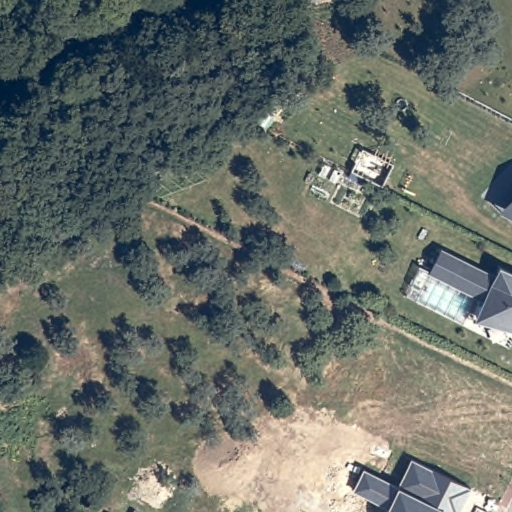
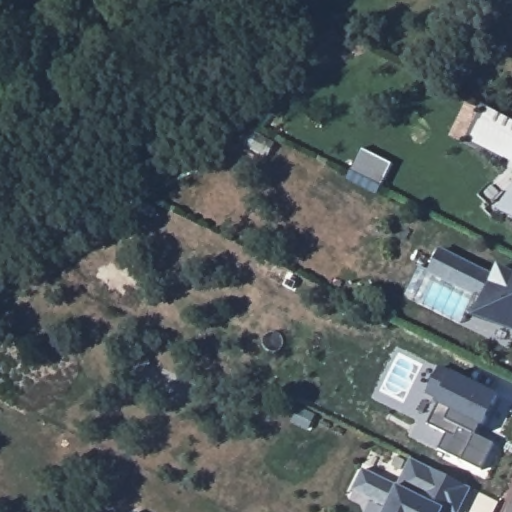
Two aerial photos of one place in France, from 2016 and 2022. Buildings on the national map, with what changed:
unchanged [(512,193),(512,218),(495,210),(512,193)]
unchanged [(441,248),(495,274),(499,265),(512,271),(512,328),(467,312),(476,293),(430,270),(441,248)]
new [(498,445),(485,472),(443,451),(450,435),(431,426),(444,401),(431,394),(444,369),(502,398),(487,426),(486,426),(481,437),(498,445)]
unchanged [(473,487),(461,512),(385,512),(386,509),(351,491),(363,467),(398,483),(412,458),(473,487)]

